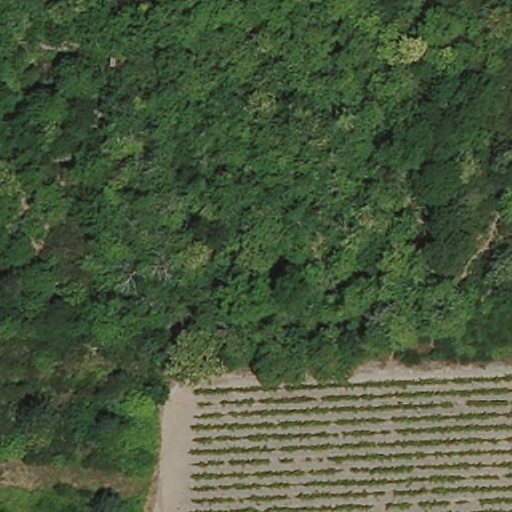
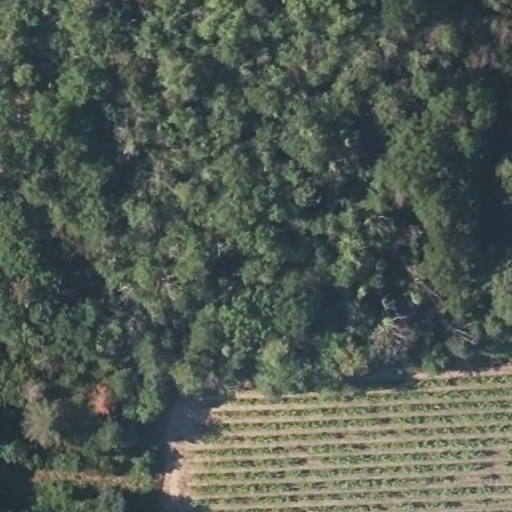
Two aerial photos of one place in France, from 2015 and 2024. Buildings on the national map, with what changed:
unchanged [(121,70),(119,89),(98,84),(101,67),(121,70)]

